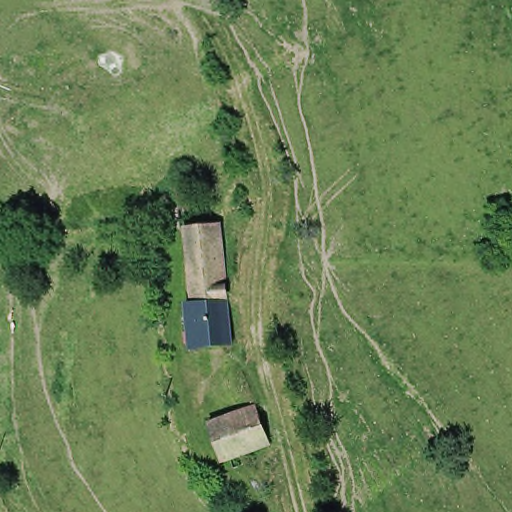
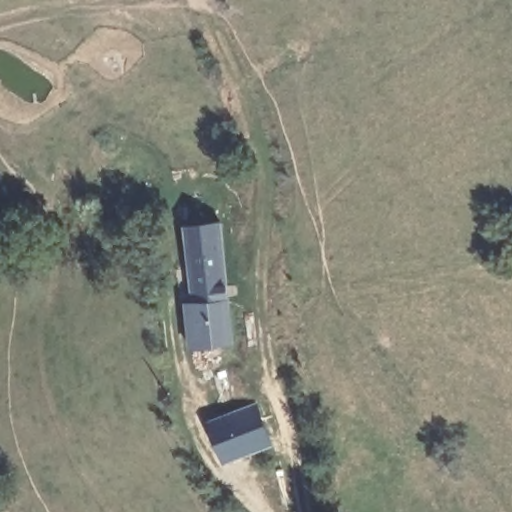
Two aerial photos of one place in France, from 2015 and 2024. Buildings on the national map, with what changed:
unchanged [(242,339),(197,344),(191,300),(196,299),(186,231),(186,230),(187,230),(224,222),(242,339)]
unchanged [(226,464),(207,422),(253,397),(270,440),(226,464)]

